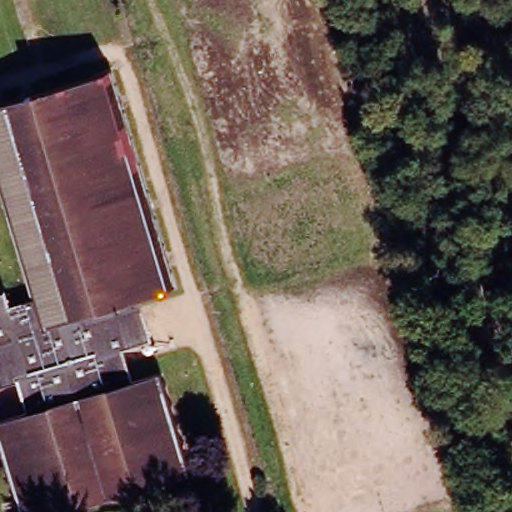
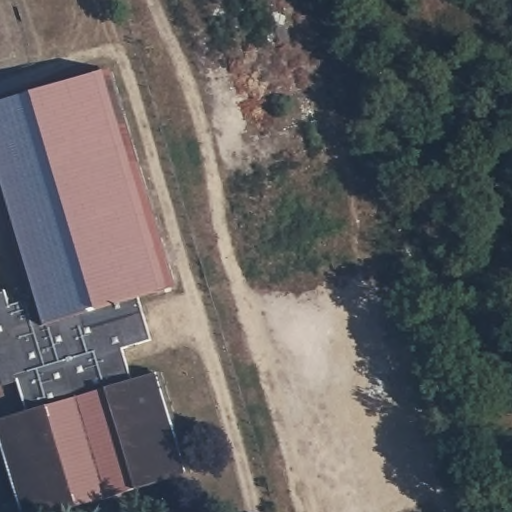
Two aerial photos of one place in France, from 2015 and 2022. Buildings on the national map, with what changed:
unchanged [(0,178),(0,103),(105,72),(170,287),(137,297),(42,326),(35,297),(0,178)]
unchanged [(150,340),(120,349),(130,381),(157,372),(187,473),(85,503),(57,512),(19,512),(0,449),(0,420),(25,412),(15,382),(0,387),(0,293),(5,292),(8,305),(23,300),(35,297),(42,326),(137,297),(140,308),(150,340)]

